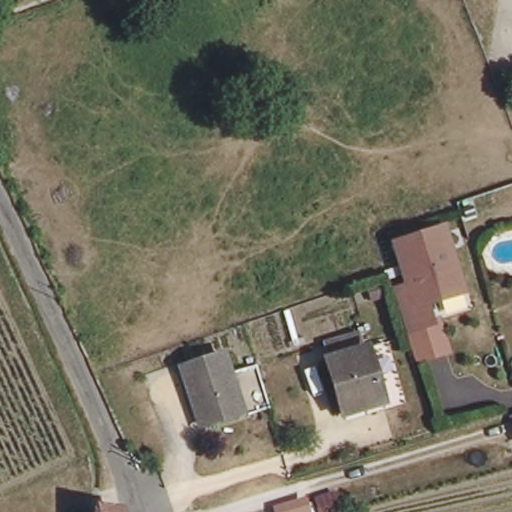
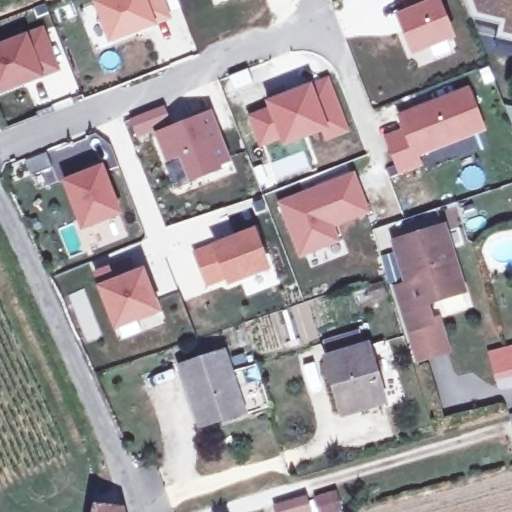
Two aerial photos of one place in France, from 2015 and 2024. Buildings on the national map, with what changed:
new [(92,1),(95,0),(165,0),(173,19),(108,43),(92,1)]
new [(456,38),(413,55),(395,14),(409,8),(405,0),(440,0),(456,38)]
new [(497,38),(499,25),(473,18),(466,0),(512,0),(512,41),(497,38)]
new [(0,43),(44,26),(61,70),(0,93),(0,43)]
new [(325,131),(284,147),(281,141),(259,148),(247,116),(268,107),(264,101),(311,84),(329,78),(349,132),(326,142),(325,131)]
new [(487,131),(419,157),(424,166),(399,175),(384,136),(402,129),(398,115),(468,87),(487,131)]
new [(508,104),(512,105),(512,114),(508,104)]
new [(208,115),(225,158),(191,171),(183,151),(168,156),(159,133),(208,115)]
new [(61,179),(103,164),(123,215),(81,230),(61,179)]
new [(370,214),(334,227),(339,241),(299,257),(278,202),(354,173),(370,214)]
unchanged [(416,281),(401,239),(448,223),(457,250),(459,257),(469,287),(432,299),(439,318),(417,326),(403,285),(416,281)]
new [(196,249),(254,227),(269,263),(230,278),(228,272),(208,280),(196,249)]
new [(161,312),(115,331),(96,286),(98,285),(93,272),(129,257),(135,270),(144,267),(161,312)]
unchanged [(374,286),(387,283),(391,294),(377,298),(374,286)]
unchanged [(331,354),(369,343),(387,398),(348,409),(331,354)]
new [(512,344),(512,382),(496,385),(487,351),(512,344)]
unchanged [(181,363),(223,350),(241,408),(199,420),(181,363)]

